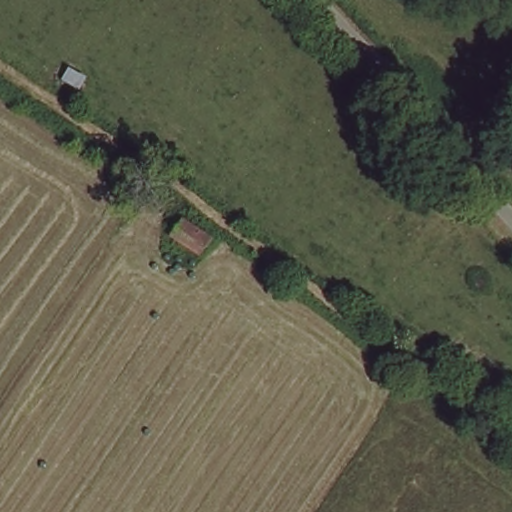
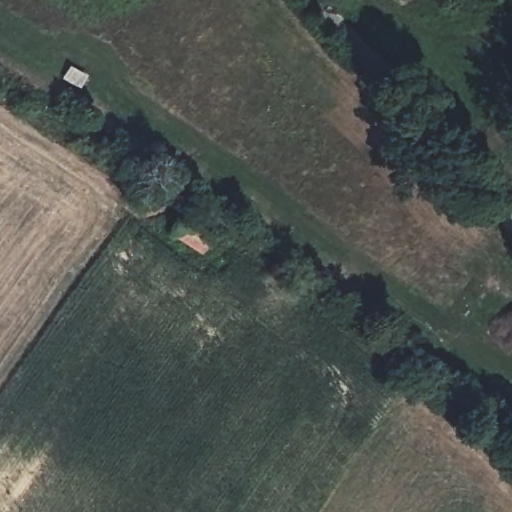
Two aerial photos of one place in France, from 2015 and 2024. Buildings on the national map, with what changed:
unchanged [(190,241),(172,230),(180,217),(197,229),(208,236),(200,248),(190,241)]

